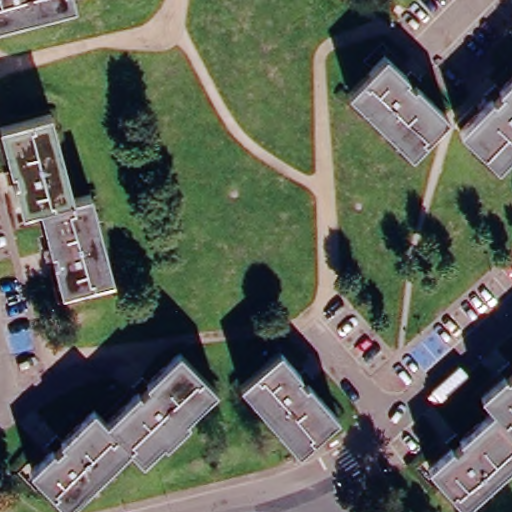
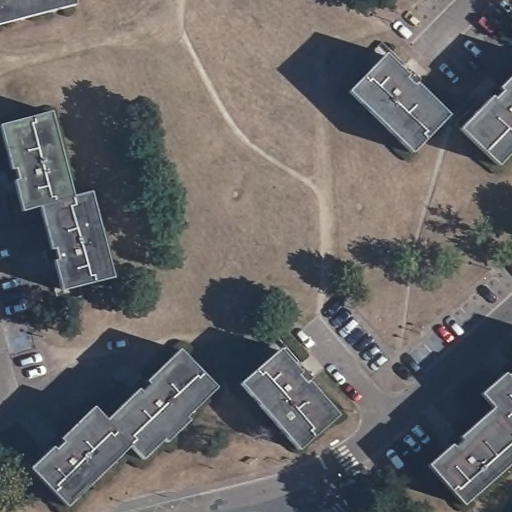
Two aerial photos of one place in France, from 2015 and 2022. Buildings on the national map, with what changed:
unchanged [(0,22),(0,0),(74,0),(75,4),(0,22)]
unchanged [(350,96),(382,58),(402,74),(409,67),(420,76),(413,85),(449,112),(418,150),(350,96)]
unchanged [(472,109),(480,98),(487,103),(512,71),(512,158),(503,168),(462,136),(478,115),(472,109)]
unchanged [(25,208),(18,182),(10,184),(7,171),(15,168),(5,127),(52,115),(72,198),(42,205),(25,208)]
unchanged [(109,278),(61,289),(55,263),(46,265),(43,252),(51,250),(42,205),(72,198),(88,193),(109,278)]
unchanged [(296,370),(303,365),(313,377),(307,382),(337,412),(297,448),(238,384),(277,349),(296,370)]
unchanged [(139,389),(133,383),(144,374),(150,379),(182,352),(214,388),(180,418),(185,424),(162,445),(157,439),(138,455),(127,445),(103,419),(139,389)]
unchanged [(502,376),(497,369),(507,361),(512,366),(512,432),(492,409),(479,393),(502,376)]
unchanged [(62,503),(27,464),(47,447),(42,442),(53,433),(58,438),(92,407),(103,419),(127,445),(62,503)]
unchanged [(457,503),(425,462),(447,445),(442,439),(453,431),(457,436),(492,409),(512,432),(512,459),(457,503)]

